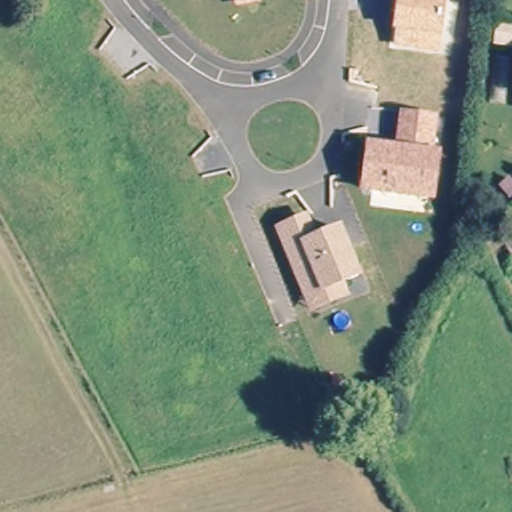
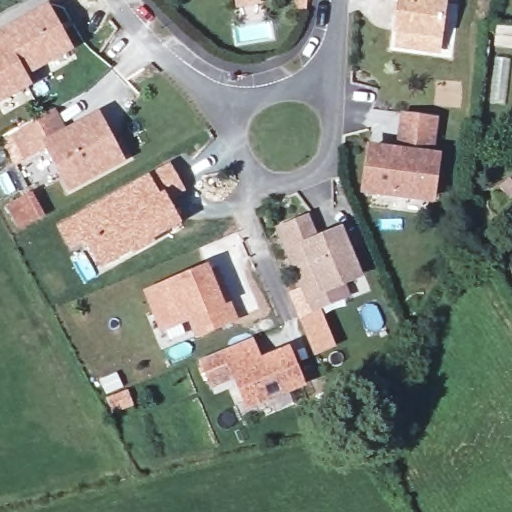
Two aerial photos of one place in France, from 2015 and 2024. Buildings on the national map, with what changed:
unchanged [(260,4),(236,8),(235,0),(259,0),(260,4)]
unchanged [(440,55),(391,49),(398,0),(447,0),(440,55)]
new [(76,50),(28,76),(33,87),(0,104),(0,30),(50,3),(76,50)]
new [(109,167),(69,187),(47,145),(25,156),(12,132),(52,111),(65,135),(95,119),(107,141),(118,162),(109,167)]
unchanged [(366,142),(395,146),(399,112),(438,117),(434,151),(442,152),(435,202),(360,192),(366,142)]
new [(71,217),(147,176),(171,162),(186,192),(169,200),(182,225),(100,270),(71,217)]
new [(44,216),(22,227),(19,223),(10,206),(27,196),(32,194),(44,216)]
unchanged [(308,214),(317,235),(341,225),(363,276),(344,284),(350,297),(321,309),(309,314),(298,287),(274,228),(308,214)]
new [(214,268),(235,320),(228,323),(198,335),(191,318),(159,331),(158,330),(162,328),(149,296),(145,297),(144,295),(213,267),(214,268)]
new [(298,287),(309,314),(321,309),(336,346),(313,354),(288,292),(298,287)]
new [(246,412),(233,381),(209,389),(197,361),(254,337),(261,357),(290,345),(306,387),(246,412)]

